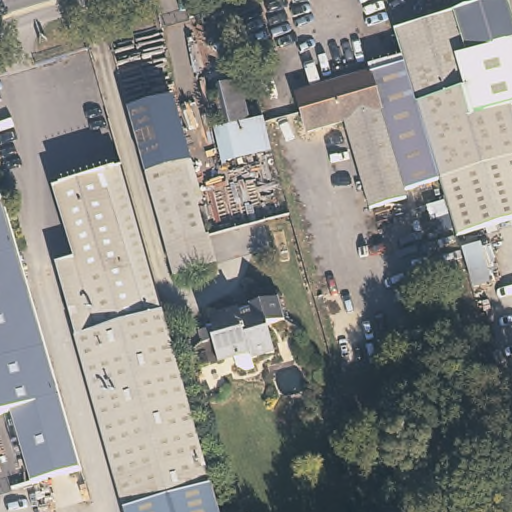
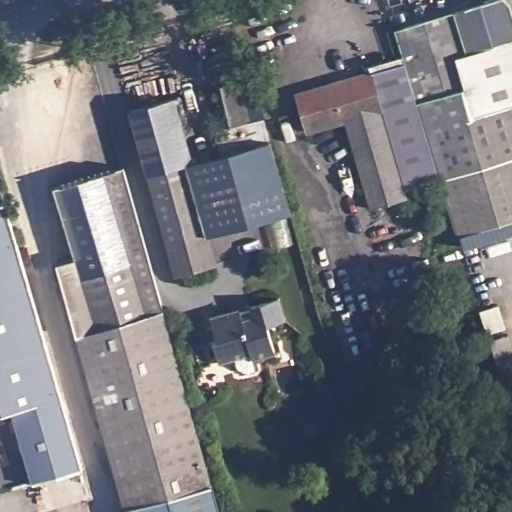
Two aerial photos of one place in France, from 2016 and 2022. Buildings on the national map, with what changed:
unchanged [(395,31),(503,0),(507,6),(512,22),(512,108),(510,108),(512,113),(512,223),(458,238),(440,182),(440,180),(422,122),(405,64),(395,31)]
unchanged [(422,122),(440,180),(440,182),(408,191),(410,199),(372,210),(347,123),(312,133),(300,95),(405,64),(422,122)]
new [(193,206),(203,203),(190,162),(213,155),(211,133),(229,128),(217,89),(238,83),(252,80),(266,139),(269,138),(290,212),(203,238),(201,231),(193,206)]
demolished [(249,122),(229,128),(217,89),(238,83),(249,122)]
unchanged [(126,110),(169,96),(203,203),(193,206),(178,160),(172,162),(144,171),(126,110)]
unchanged [(202,235),(164,247),(163,243),(140,172),(144,171),(178,160),(193,206),(201,231),(202,235)]
unchanged [(120,170),(163,307),(165,313),(146,319),(100,176),(120,170)]
unchanged [(167,320),(219,486),(211,488),(134,512),(132,512),(56,268),(74,262),(51,192),(100,176),(146,319),(165,313),(167,320)]
unchanged [(81,469),(33,484),(10,409),(0,413),(0,200),(2,199),(81,469)]
unchanged [(445,201),(452,225),(422,233),(415,210),(445,201)]
unchanged [(212,264),(173,275),(164,247),(202,235),(212,264)]
unchanged [(198,332),(211,328),(208,317),(236,309),(237,312),(249,308),(248,305),(277,296),(285,317),(266,323),(275,350),(253,356),(257,367),(247,371),(237,366),(234,356),(218,361),(211,339),(201,343),(198,332)]
unchanged [(218,512),(134,512),(211,488),(218,512)]

